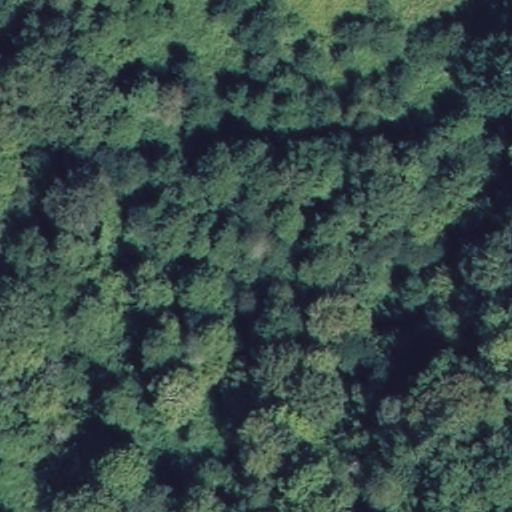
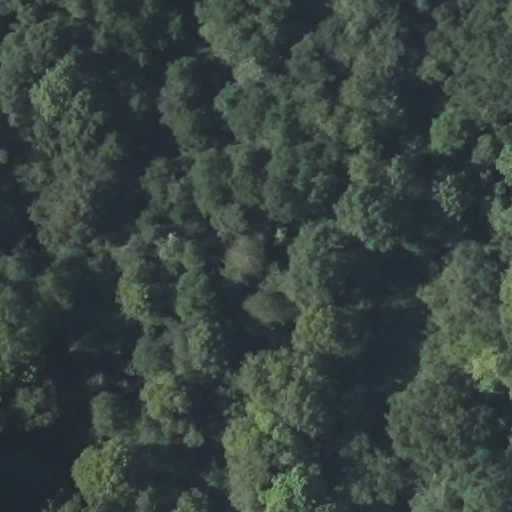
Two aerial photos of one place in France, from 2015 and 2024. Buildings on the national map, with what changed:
[]

